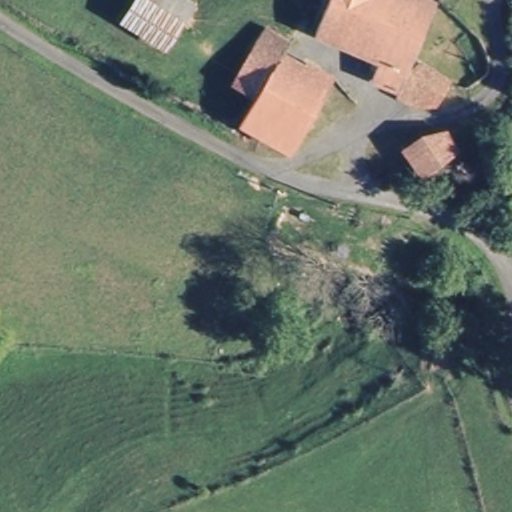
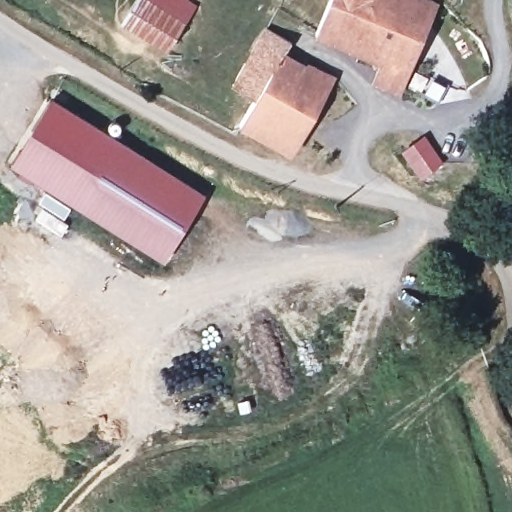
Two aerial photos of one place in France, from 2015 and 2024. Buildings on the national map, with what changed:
unchanged [(170,54),(128,27),(144,0),(181,0),(197,10),(170,54)]
unchanged [(426,0),(434,3),(412,57),(443,69),(434,91),(417,84),(411,100),(388,91),(391,84),(371,76),(376,64),(313,39),(330,0),(426,0)]
new [(292,42),(286,49),(337,77),(291,156),(239,126),(255,97),(230,84),(264,27),(292,42)]
demolished [(309,131),(259,110),(250,106),(232,97),(244,69),(263,76),(323,100),(309,131)]
new [(207,196),(166,262),(8,168),(51,99),(207,196)]
demolished [(304,140),(301,147),(284,151),(246,139),(259,110),(309,131),(304,140)]
unchanged [(423,137),(450,132),(458,144),(446,171),(419,181),(400,152),(423,137)]
demolished [(304,212),(324,220),(314,245),(295,237),(304,212)]

